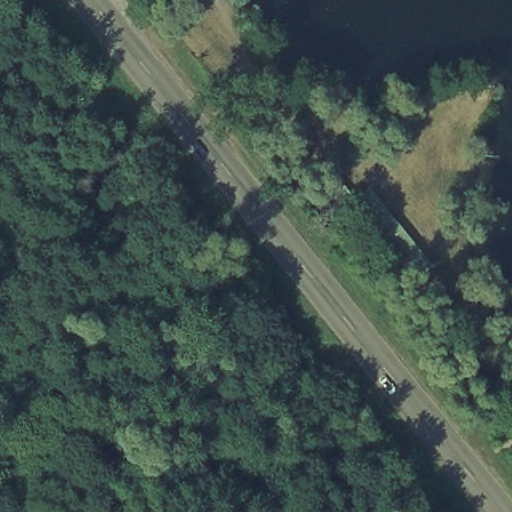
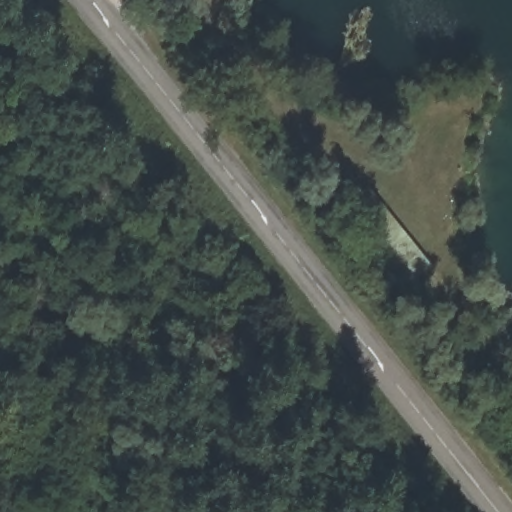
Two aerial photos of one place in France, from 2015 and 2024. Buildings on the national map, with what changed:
unchanged [(437,270),(403,298),(338,209),(375,181),(437,270)]

